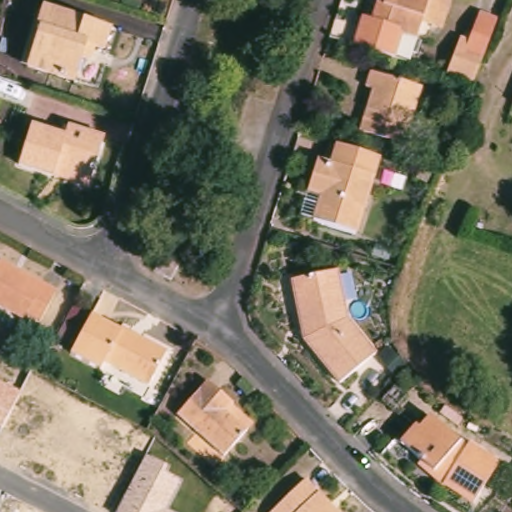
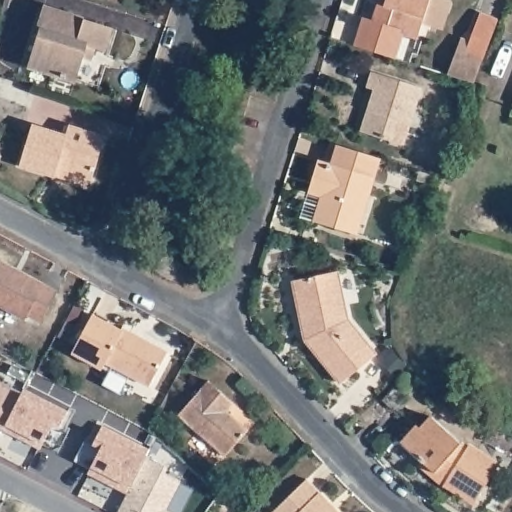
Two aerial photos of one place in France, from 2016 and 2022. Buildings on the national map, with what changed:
unchanged [(416,39),(401,35),(395,58),(361,47),(330,37),(332,31),(336,18),(358,26),(363,12),(373,13),(377,0),(429,0),(416,39)]
unchanged [(108,33),(100,55),(83,50),(70,85),(23,69),(35,35),(29,33),(37,12),(108,33)]
unchanged [(477,65),(460,58),(475,16),(493,23),(477,65)]
unchanged [(417,93),(399,150),(353,136),(366,94),(359,92),(364,76),(417,93)]
unchanged [(512,103),(512,106),(511,105),(512,103)]
unchanged [(59,141),(63,131),(97,142),(82,189),(14,168),(26,131),(59,141)]
unchanged [(378,162),(370,183),(373,184),(356,237),(301,220),(318,166),(325,169),(331,147),(378,162)]
unchanged [(160,262),(164,254),(181,264),(174,279),(155,270),(160,262)]
unchanged [(51,296),(34,325),(21,318),(17,323),(0,314),(0,269),(51,296)]
unchanged [(345,319),(373,352),(340,379),(305,339),(301,318),(293,282),(298,281),(335,274),(345,319)]
unchanged [(161,357),(144,390),(101,368),(97,375),(65,358),(86,319),(161,357)]
unchanged [(396,374),(383,361),(393,351),(406,363),(396,374)]
unchanged [(20,392),(2,427),(0,427),(0,383),(20,392)]
unchanged [(229,409),(222,417),(242,435),(219,460),(172,419),(203,386),(229,409)]
new [(22,387),(73,413),(67,425),(70,427),(57,453),(41,445),(40,448),(2,427),(20,392),(22,387)]
unchanged [(461,448),(465,444),(492,462),(468,503),(438,483),(417,466),(420,462),(395,440),(410,424),(414,427),(425,415),(461,448)]
new [(85,472),(88,467),(74,459),(86,436),(93,439),(97,432),(101,424),(148,448),(145,456),(126,493),(85,472)]
unchanged [(165,466),(162,472),(179,480),(165,510),(169,512),(117,512),(145,456),(165,466)]
unchanged [(332,512),(266,512),(300,478),(332,512)]

